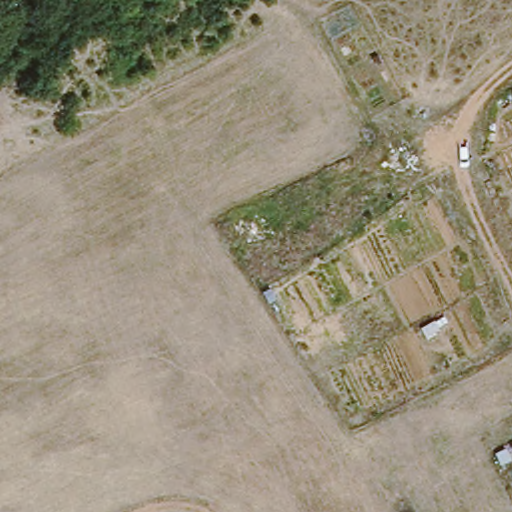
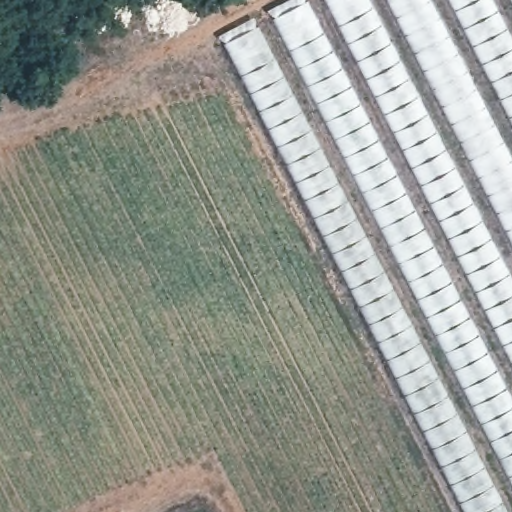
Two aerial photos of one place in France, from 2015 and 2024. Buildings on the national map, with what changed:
new [(308,0),(512,0),(512,512),(467,512),(225,43),(308,0)]

